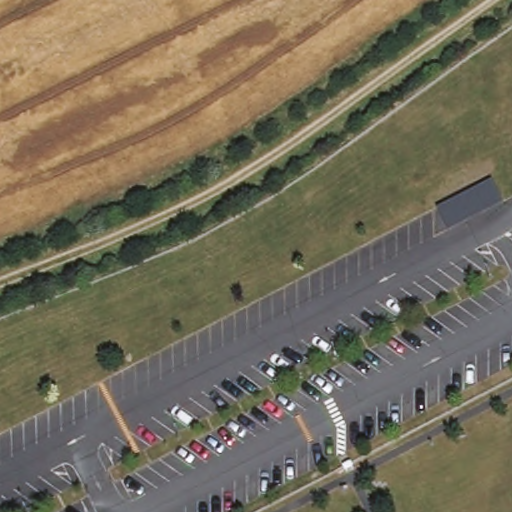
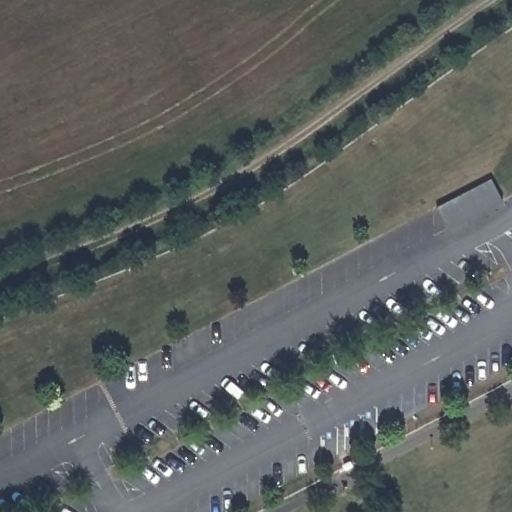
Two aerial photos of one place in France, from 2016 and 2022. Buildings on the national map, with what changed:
unchanged [(488,175),(500,197),(444,225),(433,204),(488,175)]

